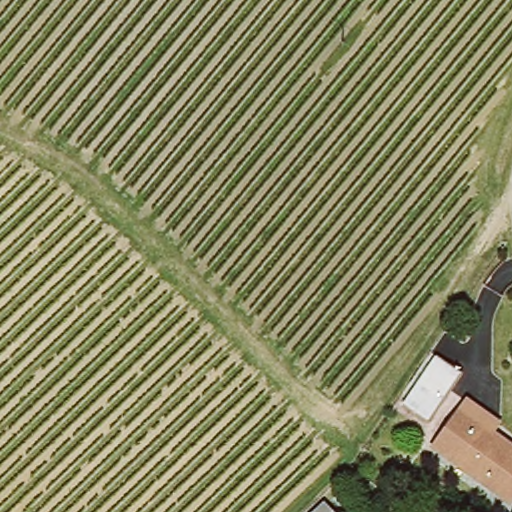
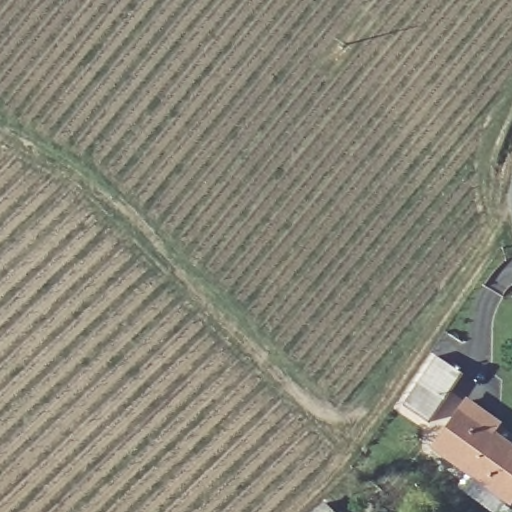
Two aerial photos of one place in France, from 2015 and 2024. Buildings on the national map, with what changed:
unchanged [(408,405),(444,354),(467,370),(456,387),(433,422),(420,414),(408,405)]
unchanged [(462,406),(512,440),(512,494),(437,444),(462,406)]
unchanged [(337,512),(313,512),(325,501),(337,512)]

